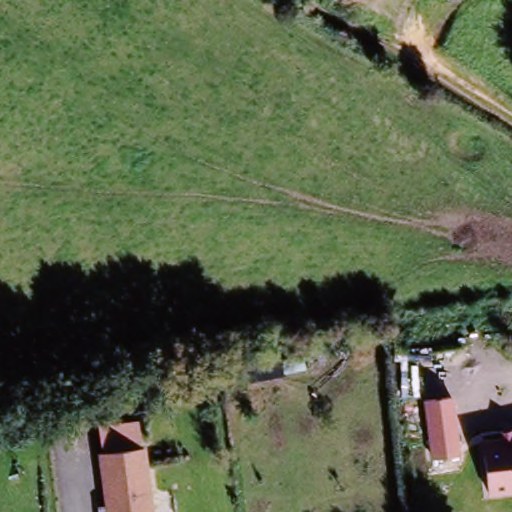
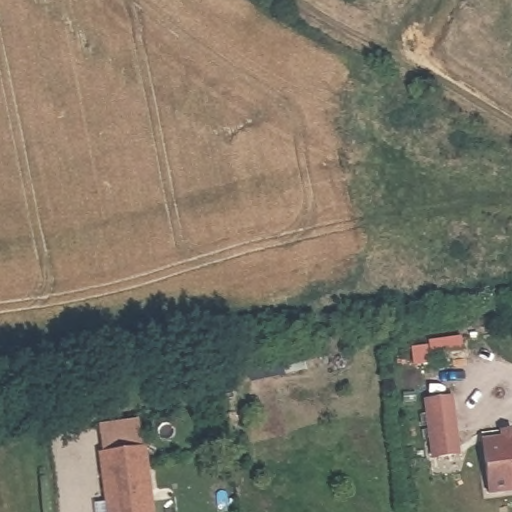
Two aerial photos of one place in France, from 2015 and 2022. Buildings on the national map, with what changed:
unchanged [(420,403),(451,399),(458,457),(427,460),(420,403)]
unchanged [(512,493),(488,497),(481,444),(512,440),(512,493)]
unchanged [(102,506),(95,454),(138,448),(147,512),(102,512),(102,506)]

